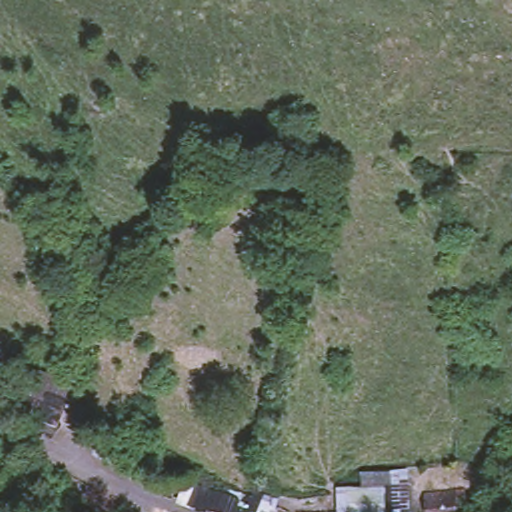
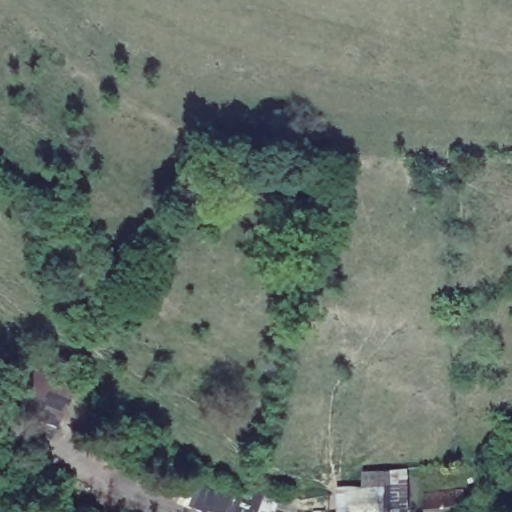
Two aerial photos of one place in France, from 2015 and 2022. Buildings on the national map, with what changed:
unchanged [(170,497),(185,472),(204,483),(192,503),(170,497)]
unchanged [(425,485),(460,484),(462,512),(428,512),(425,485)]

